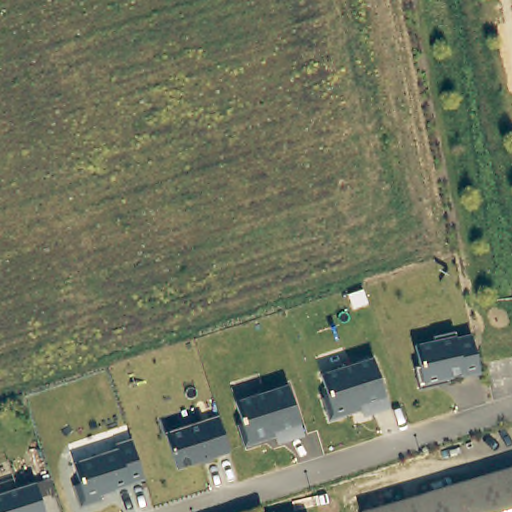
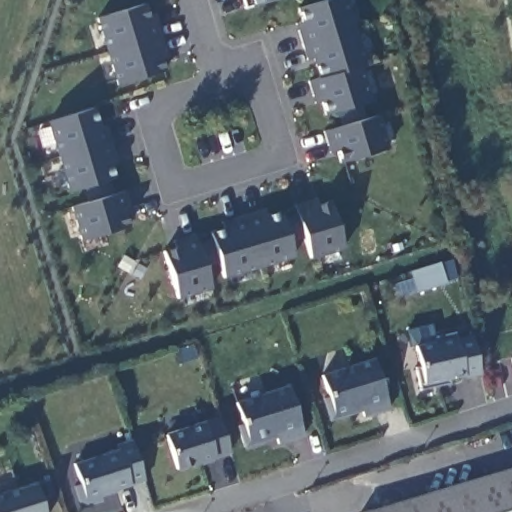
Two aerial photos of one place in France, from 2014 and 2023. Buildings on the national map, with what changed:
new [(245,9),(242,0),(276,0),(254,7),(245,9)]
new [(345,0),(366,66),(361,67),(371,102),(360,105),(363,119),(379,114),(388,150),(339,164),(336,152),(330,154),(323,132),(341,127),(337,112),(325,115),(321,104),(316,106),(308,80),(318,77),(312,59),(307,60),(294,22),(300,21),(296,8),(323,0),(345,0)]
new [(142,4),(146,17),(154,14),(167,59),(162,61),(165,72),(117,86),(96,17),(142,4)]
new [(95,108),(100,127),(105,126),(117,164),(111,166),(115,180),(109,181),(114,194),(126,191),(132,214),(126,217),(129,229),(82,242),(71,207),(86,203),(81,187),(67,191),(47,122),(95,108)]
new [(175,249),(173,241),(196,235),(198,243),(212,239),(210,232),(222,229),(220,222),(266,209),(268,215),(281,211),(283,217),(296,214),(293,205),(312,199),(313,206),(328,201),(344,251),(310,259),(304,239),(291,242),(295,257),(224,278),(220,264),(206,267),(212,288),(177,298),(164,252),(175,249)]
unchanged [(463,375),(448,378),(450,383),(420,390),(417,378),(415,367),(420,366),(416,346),(435,342),(434,337),(455,332),(457,338),(472,335),(477,359),(481,373),(463,377),(463,375)]
unchanged [(327,408),(323,398),(328,397),(321,375),(373,358),(383,390),(390,408),(363,416),(360,405),(350,408),(352,412),(330,420),(327,408)]
unchanged [(298,418),(303,436),(278,443),(275,432),(265,436),(266,440),(245,447),(242,437),(238,426),(242,424),(236,402),(288,386),(298,418)]
unchanged [(182,470),(169,433),(220,416),(232,452),(182,470)]
unchanged [(101,495),(103,501),(84,507),(76,486),(82,484),(75,463),(117,448),(117,446),(131,441),(144,479),(101,495)]
unchanged [(512,474),(512,512),(380,512),(512,474)]
unchanged [(36,482),(42,502),(45,512),(0,512),(0,494),(36,482)]

